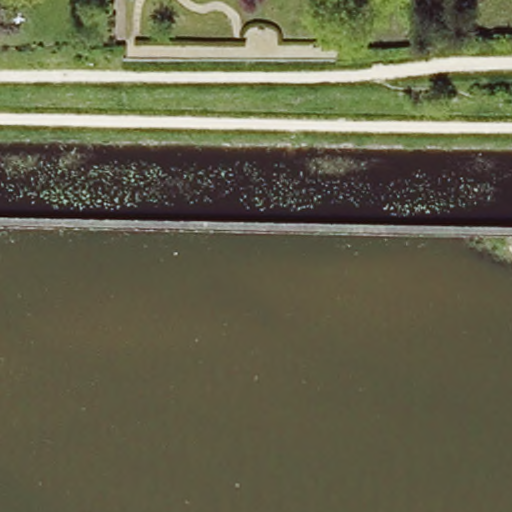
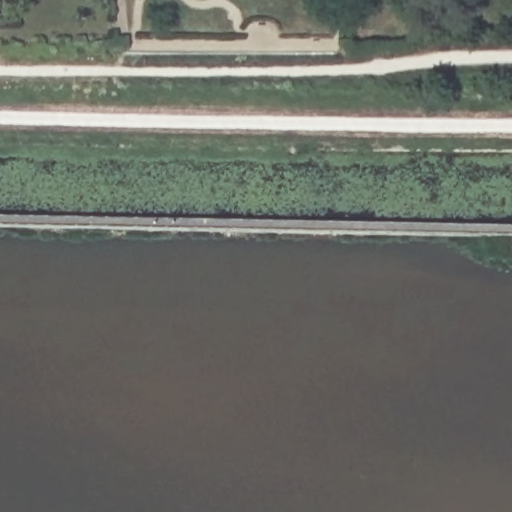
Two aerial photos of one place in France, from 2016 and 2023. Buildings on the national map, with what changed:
[]

